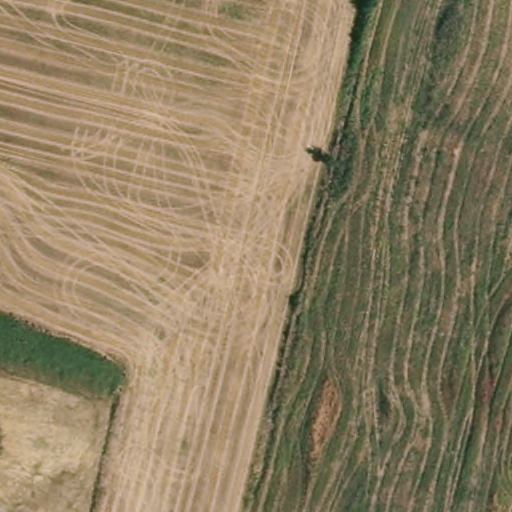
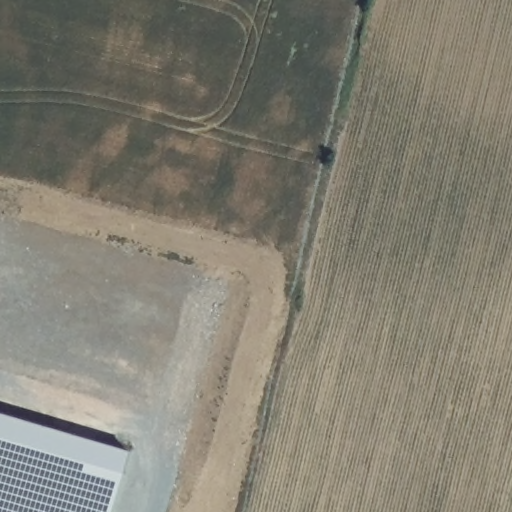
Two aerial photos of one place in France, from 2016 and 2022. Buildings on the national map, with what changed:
new [(0,414),(130,452),(113,512),(0,512),(0,414)]

